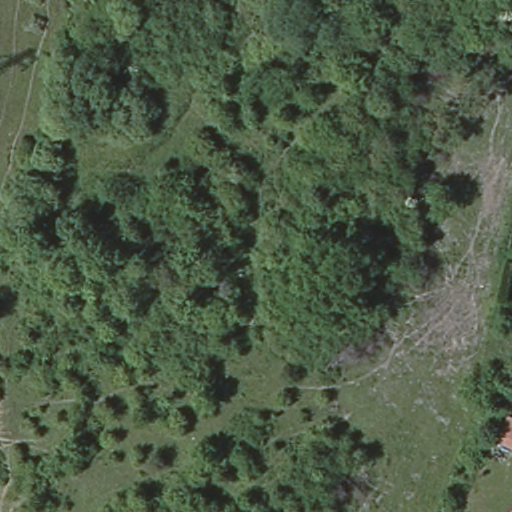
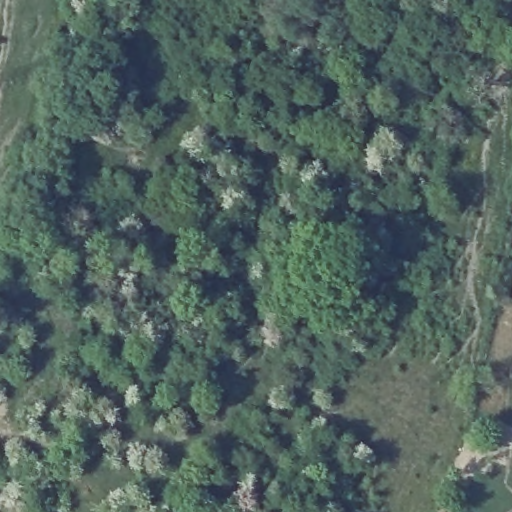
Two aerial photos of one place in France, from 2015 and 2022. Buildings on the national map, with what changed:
[]

